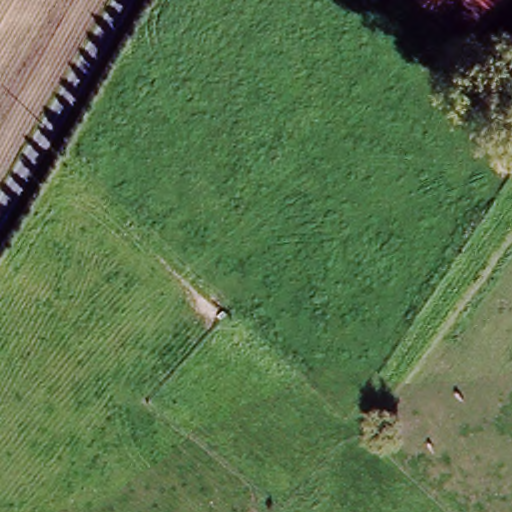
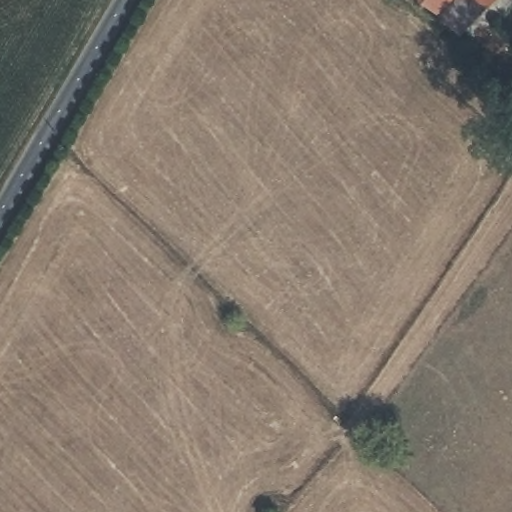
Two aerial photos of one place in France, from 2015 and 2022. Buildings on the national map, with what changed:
unchanged [(418,0),(452,0),(435,16),(418,0)]
unchanged [(478,0),(482,5),(453,35),(435,16),(452,0),(478,0)]
unchanged [(478,0),(487,0),(482,5),(478,0)]

